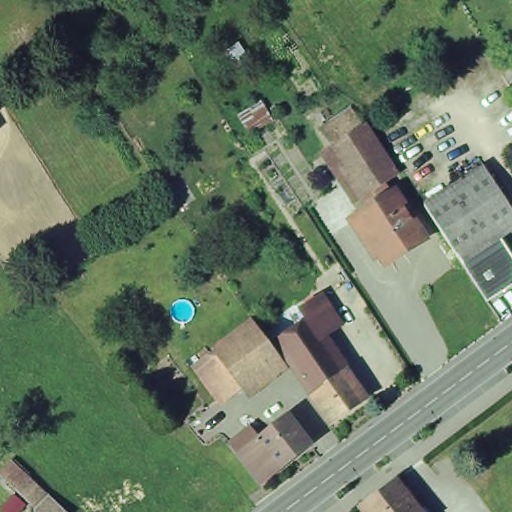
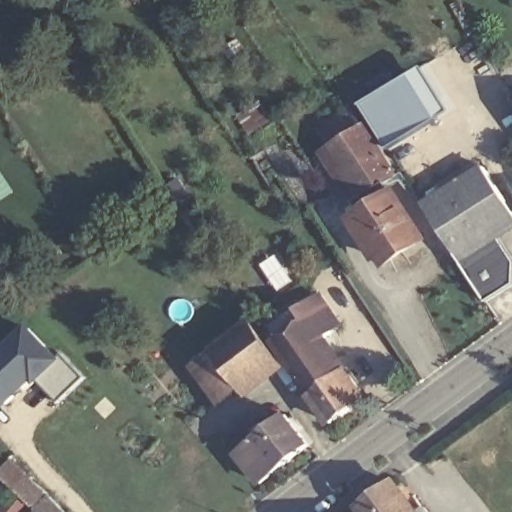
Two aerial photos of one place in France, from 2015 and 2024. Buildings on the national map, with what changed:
new [(457,112),(393,152),(368,107),(431,68),(457,112)]
unchanged [(508,106),(512,103),(512,111),(508,106)]
unchanged [(359,131),(375,157),(343,178),(326,152),(359,131)]
unchanged [(365,214),(357,201),(343,178),(375,157),(390,180),(376,190),(384,202),(388,200),(416,244),(383,264),(376,253),(366,259),(346,226),(365,214)]
unchanged [(481,172),(479,169),(484,166),(512,210),(512,222),(490,237),(459,191),(483,175),(481,172)]
unchanged [(484,298),(479,293),(474,285),(458,262),(433,221),(431,220),(430,218),(423,206),(456,186),(479,169),(481,172),(483,175),(459,191),(490,237),(491,239),(497,235),(512,258),(512,289),(488,305),(484,298)]
unchanged [(306,400),(270,348),(304,325),(297,315),(316,302),(336,331),(317,344),(339,377),(306,400)]
new [(63,407),(43,387),(16,414),(0,397),(0,364),(37,328),(91,380),(63,407)]
unchanged [(189,370),(247,328),(274,366),(218,406),(211,397),(189,370)]
unchanged [(306,400),(339,377),(359,405),(326,429),(306,400)]
unchanged [(242,453),(234,443),(253,428),(261,438),(291,415),(314,444),(284,468),(265,482),(242,453)]
unchanged [(405,473),(434,512),(381,512),(371,499),(405,473)]
unchanged [(63,512),(62,512),(37,512),(31,506),(45,494),(63,512)]

